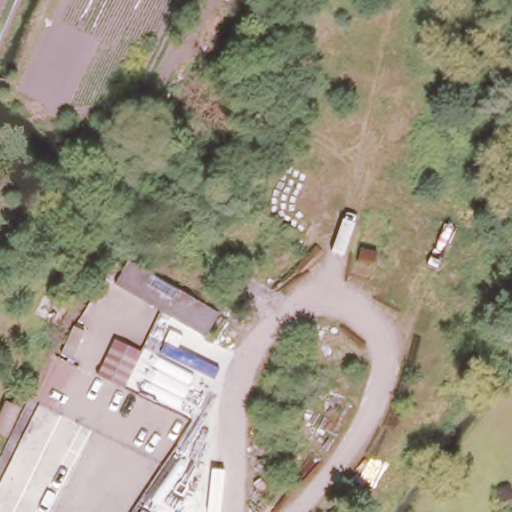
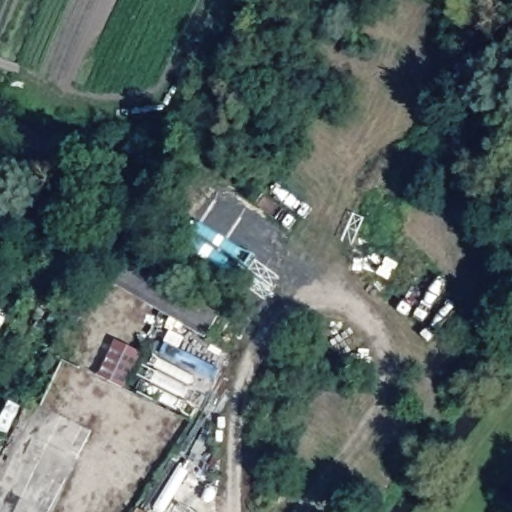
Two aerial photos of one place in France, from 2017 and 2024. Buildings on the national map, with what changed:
unchanged [(115,280),(130,260),(220,311),(205,334),(115,280)]
unchanged [(115,335),(140,347),(123,391),(98,374),(115,335)]

